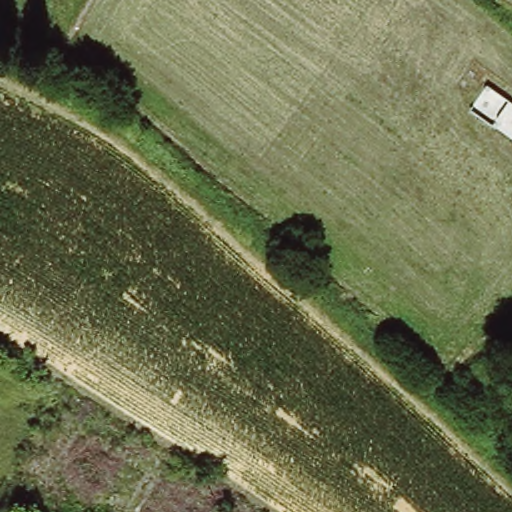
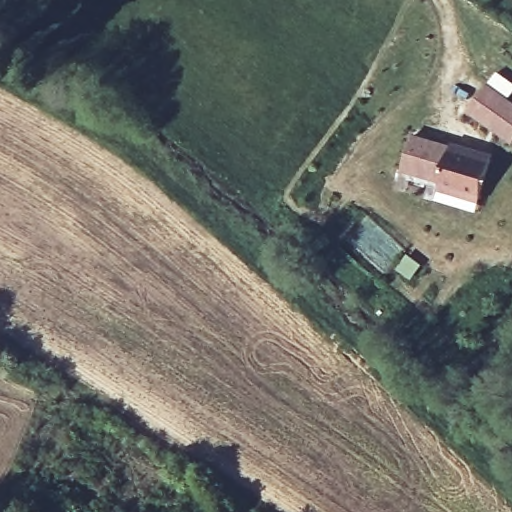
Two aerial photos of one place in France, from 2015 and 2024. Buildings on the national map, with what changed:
new [(512,100),(512,143),(467,111),(487,83),(512,100)]
new [(494,157),(480,205),(438,192),(440,183),(402,172),(413,133),(494,157)]

